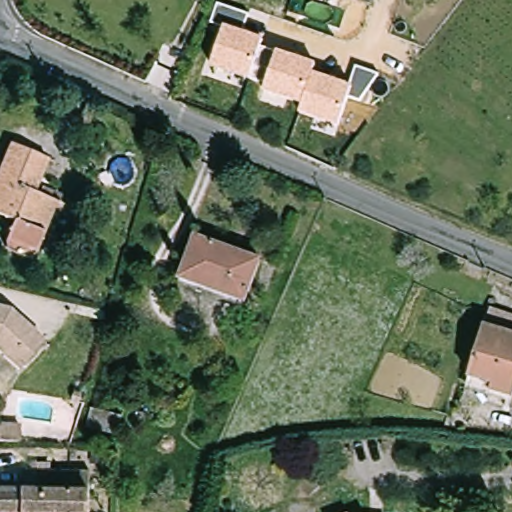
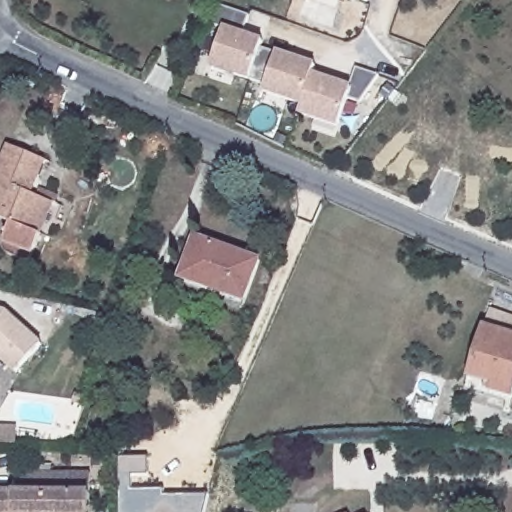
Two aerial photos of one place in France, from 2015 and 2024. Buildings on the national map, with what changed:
unchanged [(380,74),(360,101),(349,95),(339,128),(299,115),(302,106),(266,93),(269,84),(251,75),(249,81),(212,67),(224,28),(212,25),(218,6),(250,15),(242,33),(263,39),(260,45),(318,64),(317,72),(350,84),(357,68),(380,74)]
unchanged [(40,251),(36,255),(31,257),(26,257),(20,256),(16,253),(12,250),(10,246),(10,242),(10,238),(16,222),(0,216),(0,176),(13,145),(41,156),(50,159),(37,192),(59,201),(40,251)]
unchanged [(244,301),(180,278),(195,238),(259,260),(244,301)]
unchanged [(46,342),(20,368),(0,350),(0,306),(13,309),(46,342)]
unchanged [(494,383),(470,376),(490,313),(512,319),(512,396),(492,390),(494,383)]
unchanged [(120,437),(88,429),(93,410),(125,418),(120,437)]
unchanged [(17,445),(0,444),(0,425),(17,426),(17,445)]
new [(204,512),(119,512),(119,457),(149,457),(150,475),(133,476),(132,490),(164,490),(165,496),(208,495),(204,512)]
unchanged [(23,490),(24,471),(91,473),(90,512),(0,512),(0,490),(23,490)]

